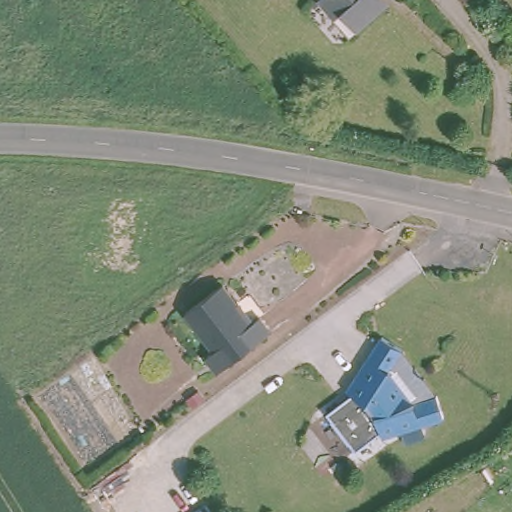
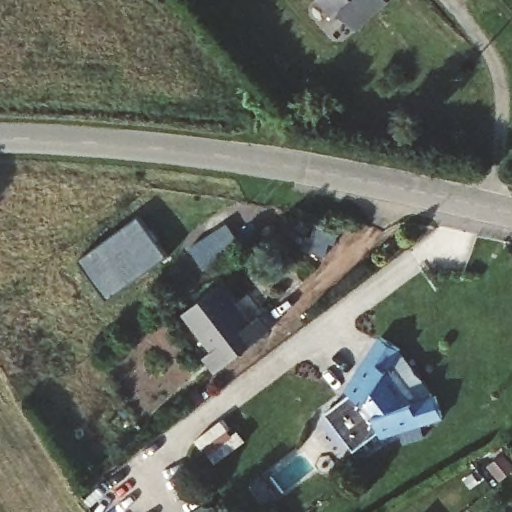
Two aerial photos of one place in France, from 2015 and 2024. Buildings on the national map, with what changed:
unchanged [(337,11),(334,14),(321,0),(382,0),(352,27),(337,11)]
new [(168,254),(108,298),(80,259),(139,216),(168,254)]
new [(227,222),(243,244),(206,269),(190,247),(227,222)]
unchanged [(216,372),(204,356),(213,349),(185,311),(224,281),(250,313),(257,309),(272,328),(216,372)]
unchanged [(380,435),(376,418),(373,412),(370,406),(357,393),(345,387),(379,333),(403,348),(437,394),(445,417),(380,435)]
unchanged [(357,393),(370,406),(373,412),(376,418),(380,435),(350,451),(327,410),(357,393)]

